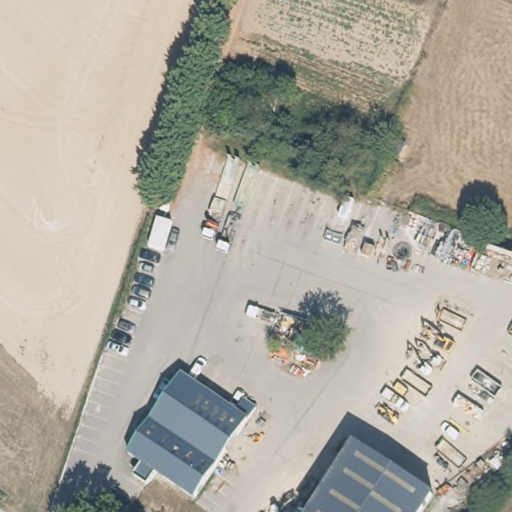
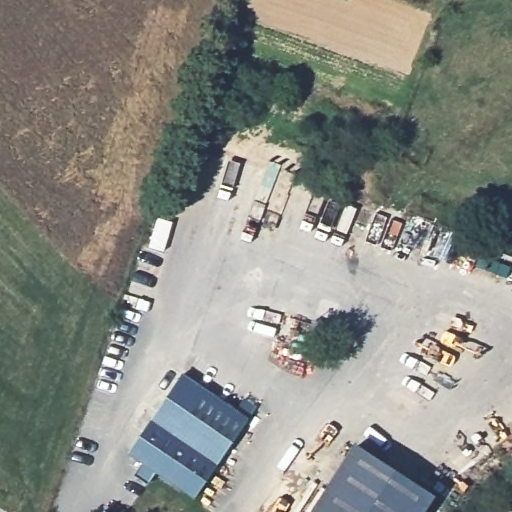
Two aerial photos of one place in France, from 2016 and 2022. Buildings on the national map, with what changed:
unchanged [(132,450),(186,372),(238,408),(247,395),(258,403),(250,415),(194,495),(132,450)]
unchanged [(359,443),(435,494),(423,512),(313,512),(359,443)]

